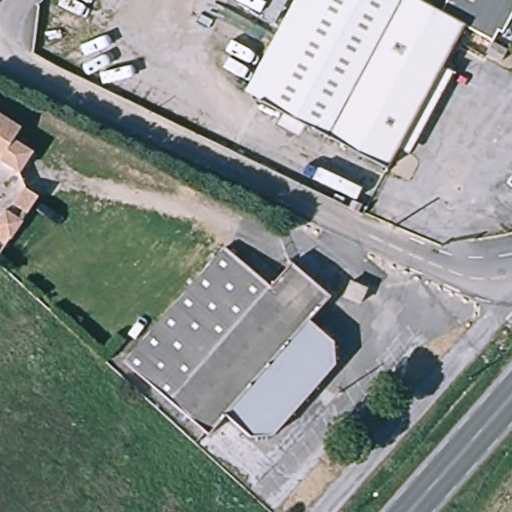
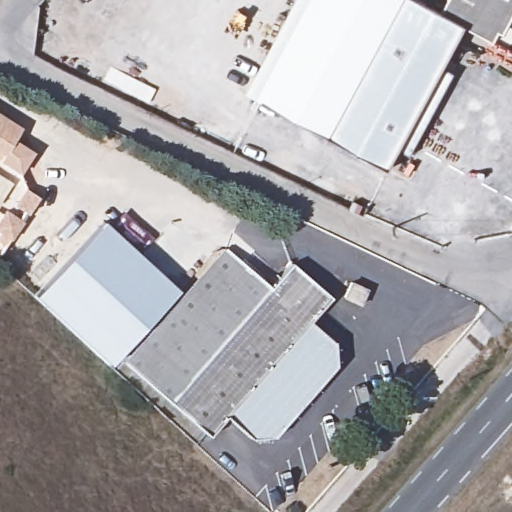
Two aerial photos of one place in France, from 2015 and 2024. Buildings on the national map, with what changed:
unchanged [(246,91),(294,0),(314,0),(262,99),(246,91)]
unchanged [(442,11),(448,0),(512,0),(512,5),(493,40),(465,25),(388,168),(262,99),(314,0),(419,0),(442,11)]
unchanged [(13,139),(32,151),(18,173),(0,163),(0,114),(20,126),(13,139)]
unchanged [(11,248),(0,241),(0,225),(2,223),(7,225),(24,197),(37,205),(11,248)]
new [(110,365),(35,297),(103,221),(179,290),(110,365)]
unchanged [(271,286),(292,263),(330,296),(310,318),(334,341),(335,345),(341,346),(342,355),(336,355),(338,362),(273,436),(269,436),(268,442),(261,441),(261,436),(252,435),(227,413),(208,435),(125,362),(226,247),(271,286)]
unchanged [(366,289),(360,304),(345,297),(351,282),(366,289)]

